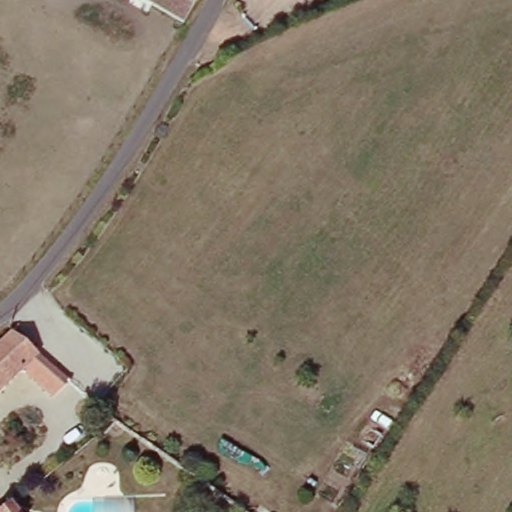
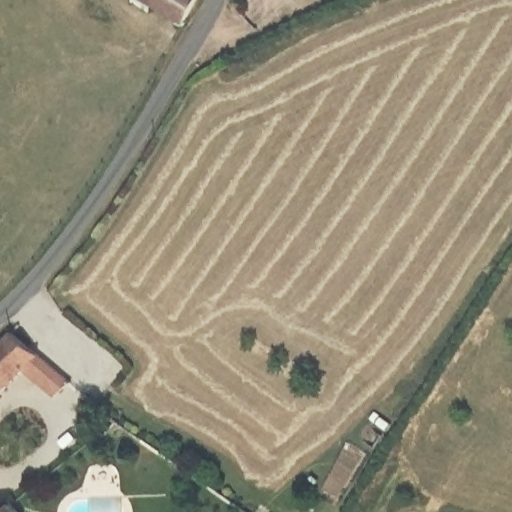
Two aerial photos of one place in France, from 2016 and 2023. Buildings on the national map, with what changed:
unchanged [(200,0),(187,22),(147,0),(200,0)]
unchanged [(26,372),(0,396),(0,346),(16,329),(76,383),(59,398),(26,372)]
unchanged [(100,419),(81,403),(87,394),(106,411),(100,419)]
unchanged [(111,433),(120,421),(139,433),(129,446),(115,434),(111,433)]
unchanged [(22,512),(6,512),(15,504),(22,512)]

